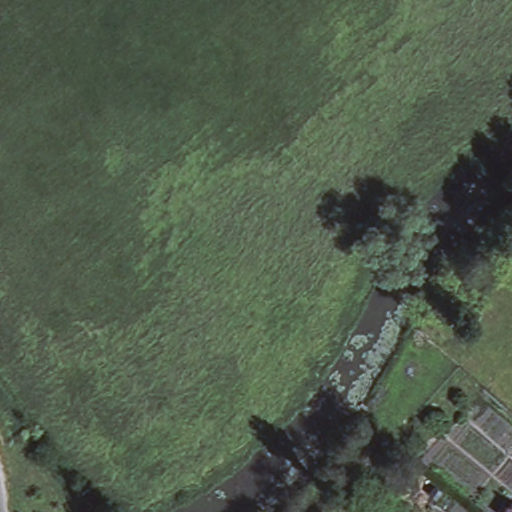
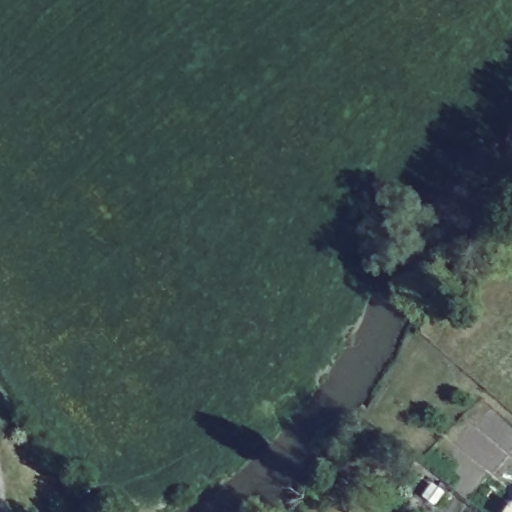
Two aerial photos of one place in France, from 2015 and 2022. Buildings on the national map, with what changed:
unchanged [(511,502),(512,503),(512,512),(503,512),(511,502)]

